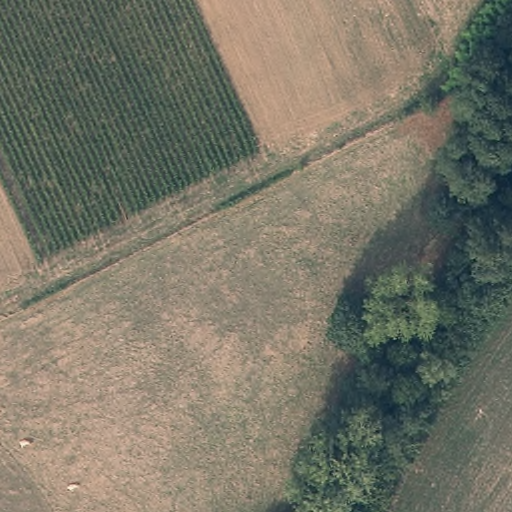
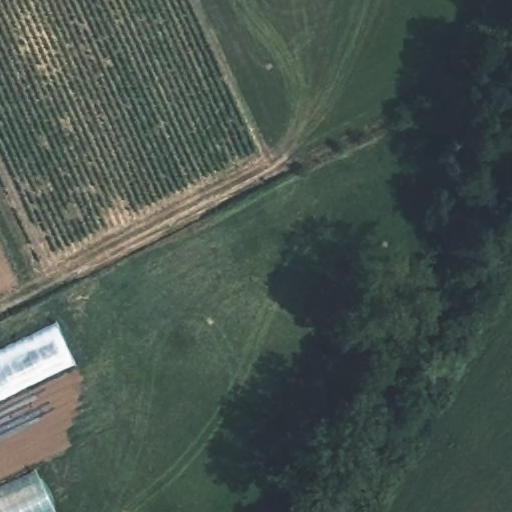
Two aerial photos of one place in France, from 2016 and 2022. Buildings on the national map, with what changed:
new [(0,402),(0,349),(58,321),(78,366),(0,402)]

